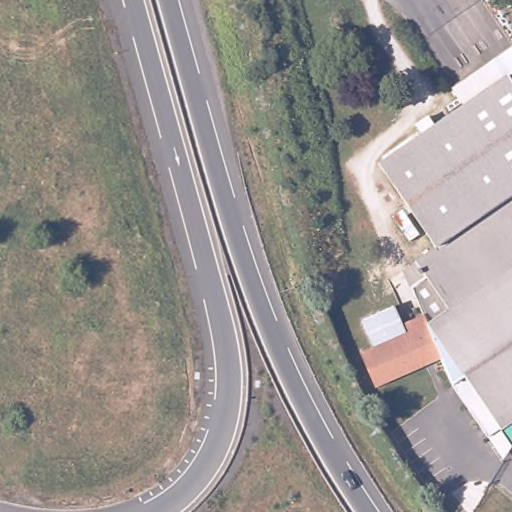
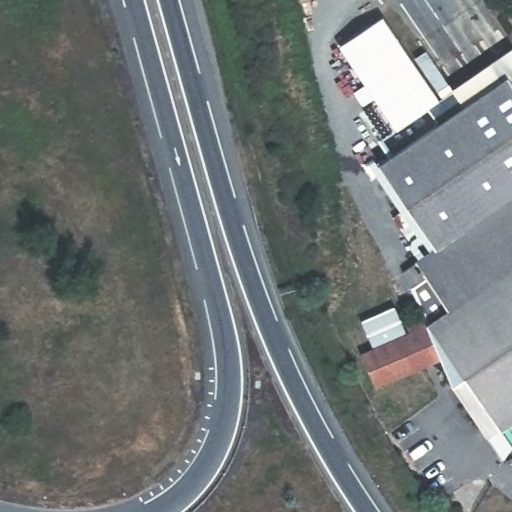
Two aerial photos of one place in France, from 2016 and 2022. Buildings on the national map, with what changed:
new [(397,132),(338,47),(384,16),(440,100),(397,132)]
unchanged [(462,108),(451,92),(511,50),(512,51),(512,87),(506,78),(462,108)]
unchanged [(409,332),(406,324),(424,316),(405,271),(436,250),(379,166),(462,108),(506,78),(512,87),(512,419),(504,425),(469,376),(456,385),(445,362),(379,387),(363,353),(409,332)]

